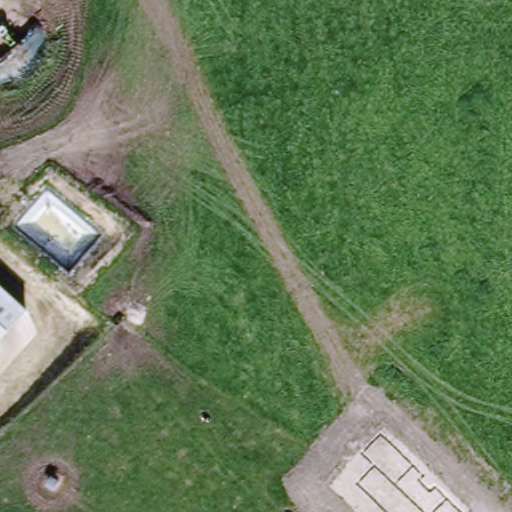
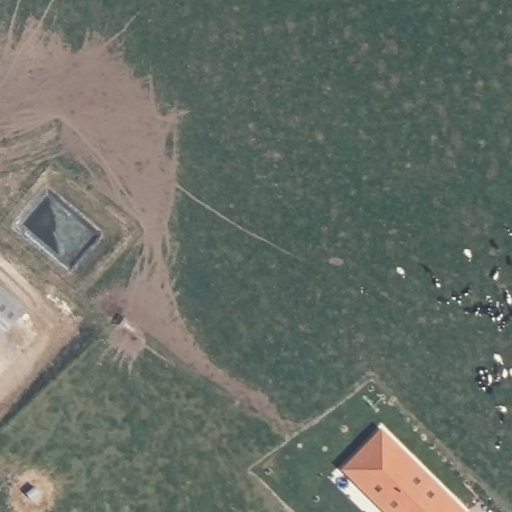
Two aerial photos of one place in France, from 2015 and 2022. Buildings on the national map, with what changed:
unchanged [(0,341),(0,285),(28,310),(0,341)]
new [(386,512),(341,467),(382,427),(468,512),(386,512)]

